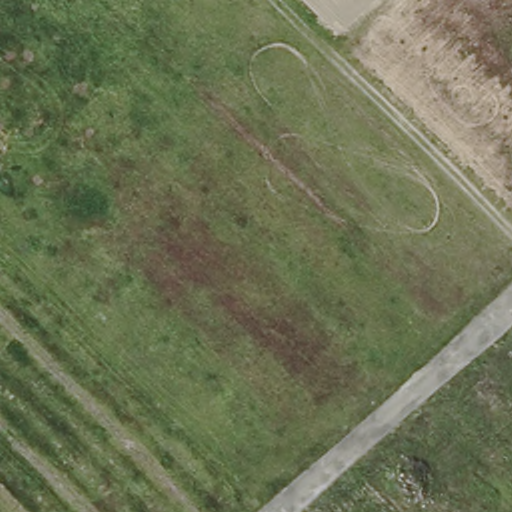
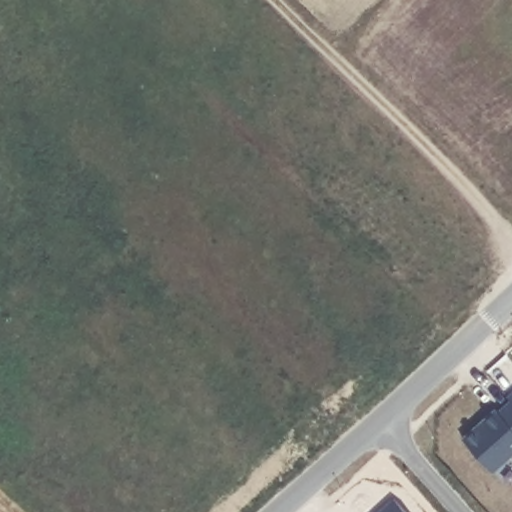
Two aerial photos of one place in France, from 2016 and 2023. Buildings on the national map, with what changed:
new [(497,408),(499,411),(511,400),(507,396),(512,392),(512,455),(493,471),(463,438),(497,408)]
new [(405,512),(380,512),(394,500),(405,512)]

